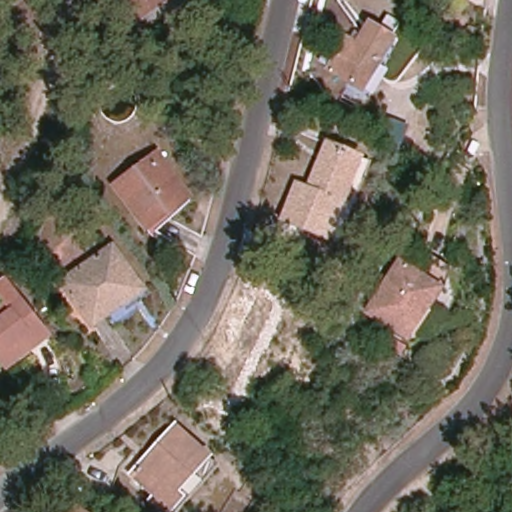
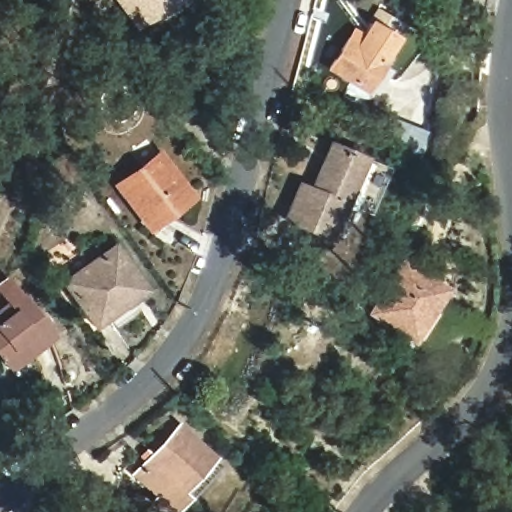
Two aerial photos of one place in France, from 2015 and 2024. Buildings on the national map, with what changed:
unchanged [(114,0),(169,0),(133,28),(114,0)]
unchanged [(350,38),(360,45),(373,21),(401,40),(368,90),(331,67),(350,38)]
unchanged [(383,118),(405,128),(396,149),(375,140),(383,118)]
unchanged [(299,181),(313,186),(330,146),(362,158),(331,235),(285,216),(299,181)]
unchanged [(160,161),(188,199),(149,229),(120,191),(160,161)]
unchanged [(116,246),(145,286),(94,325),(64,283),(116,246)]
unchanged [(398,265),(438,293),(406,341),(364,313),(398,265)]
unchanged [(0,359),(0,308),(16,296),(39,329),(47,340),(8,370),(0,359)]
unchanged [(178,427),(213,458),(181,494),(185,497),(172,512),(160,512),(153,506),(160,499),(132,475),(178,427)]
unchanged [(78,508),(83,512),(75,512),(78,508)]

